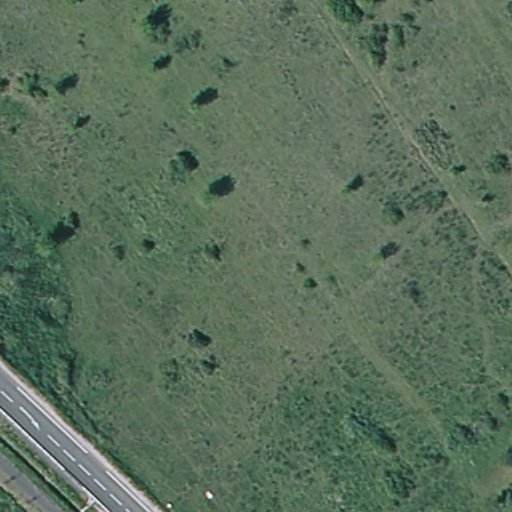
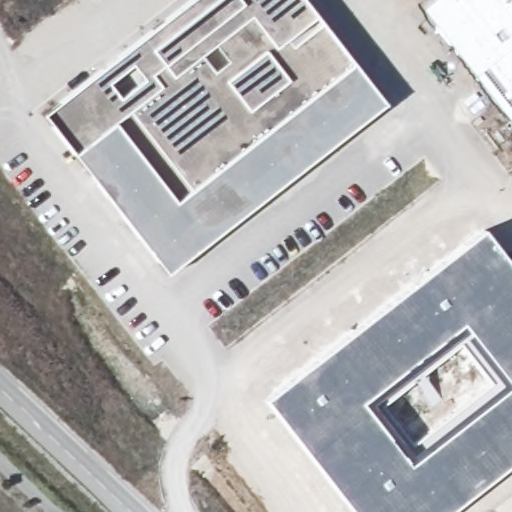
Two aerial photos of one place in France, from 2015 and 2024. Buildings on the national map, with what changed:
new [(293,46),(287,39),(276,47),(251,17),(174,77),(164,65),(150,75),(160,88),(73,155),(42,115),(189,0),(302,0),(320,24),(293,46)]
new [(425,8),(436,0),(512,0),(512,119),(425,8)]
new [(160,88),(150,75),(164,65),(174,77),(251,17),(276,47),(287,39),(293,46),(320,24),(384,105),(167,275),(73,155),(160,88)]
new [(353,512),(266,400),(483,230),(512,267),(512,464),(450,512),(353,512)]

